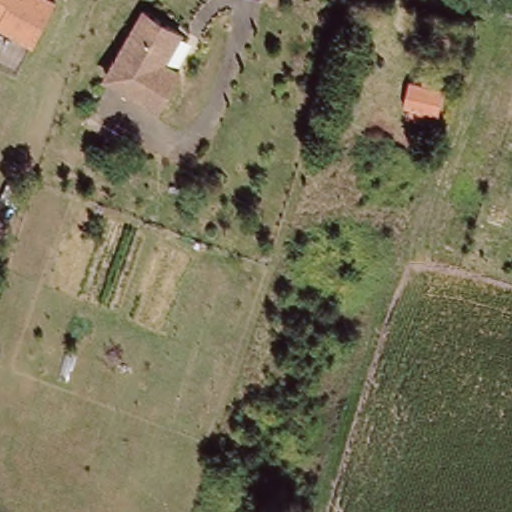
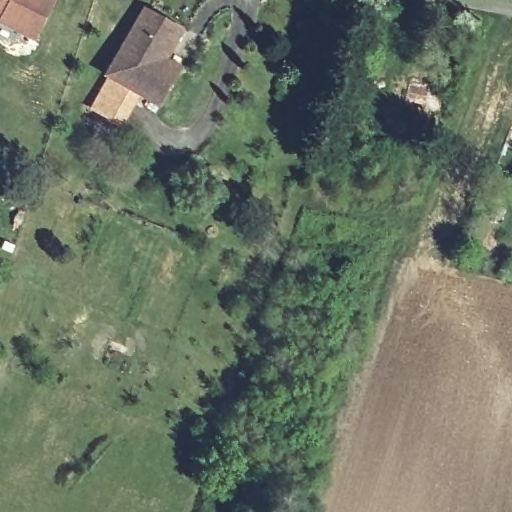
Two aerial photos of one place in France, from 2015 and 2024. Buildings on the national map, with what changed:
unchanged [(0,0),(56,0),(35,43),(0,25),(0,0)]
unchanged [(105,78),(142,10),(179,31),(162,61),(177,69),(157,106),(105,78)]
new [(90,109),(108,80),(141,98),(122,129),(90,109)]
unchanged [(412,81),(447,90),(442,114),(430,111),(427,123),(410,118),(414,107),(405,105),(412,81)]

